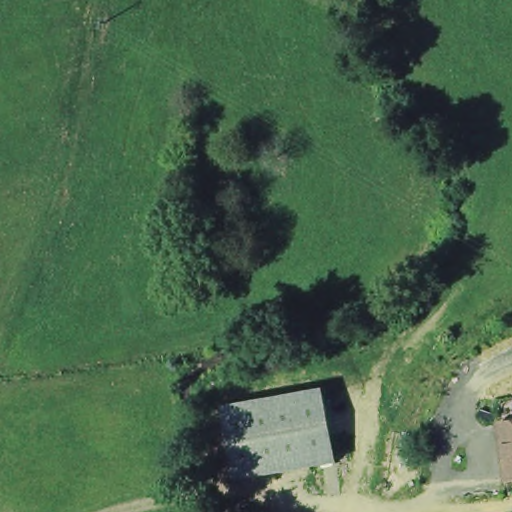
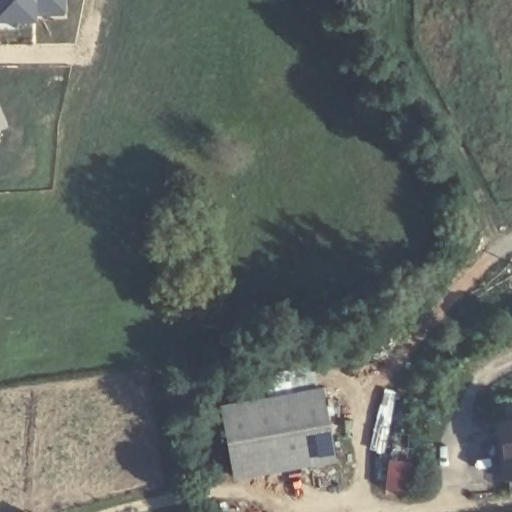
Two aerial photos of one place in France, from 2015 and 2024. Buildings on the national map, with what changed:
new [(67,17),(37,15),(37,22),(0,22),(0,0),(67,0),(67,17)]
unchanged [(335,455),(235,474),(222,404),(320,386),(335,455)]
unchanged [(497,419),(512,417),(512,477),(506,478),(497,419)]

